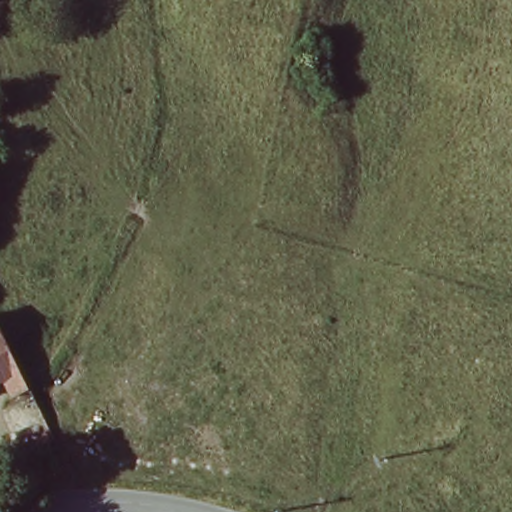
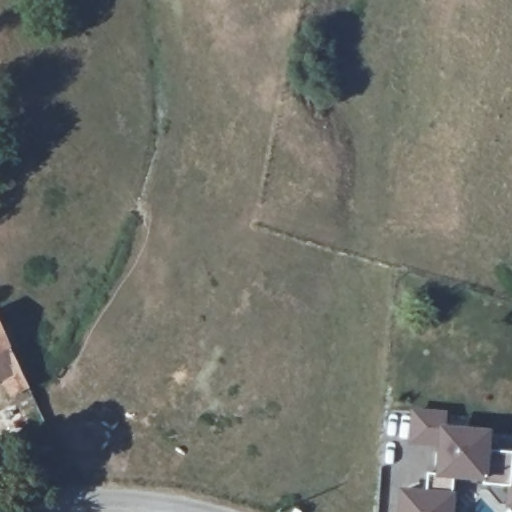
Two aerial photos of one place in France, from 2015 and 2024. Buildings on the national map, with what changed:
unchanged [(0,343),(0,334),(4,342),(0,343)]
unchanged [(0,353),(9,349),(28,390),(11,396),(0,371),(0,353)]
new [(399,489),(427,489),(428,474),(435,474),(438,447),(409,446),(412,408),(449,410),(450,427),(492,431),(491,452),(512,452),(512,509),(507,509),(509,486),(484,484),(486,481),(458,480),(455,492),(458,492),(456,512),(397,512),(399,489)]

